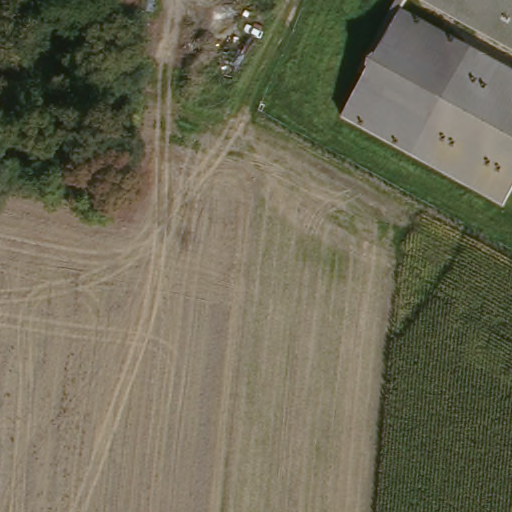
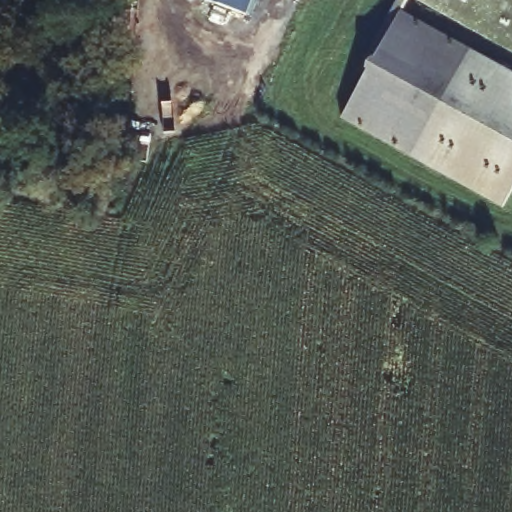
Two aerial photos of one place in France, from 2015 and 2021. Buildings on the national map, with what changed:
new [(245,14),(209,0),(250,0),(245,14)]
unchanged [(404,7),(470,46),(512,69),(512,190),(503,204),(412,151),(345,111),(366,69),(358,64),(394,0),(408,0),(404,7)]
unchanged [(433,0),(512,0),(512,46),(433,0)]

